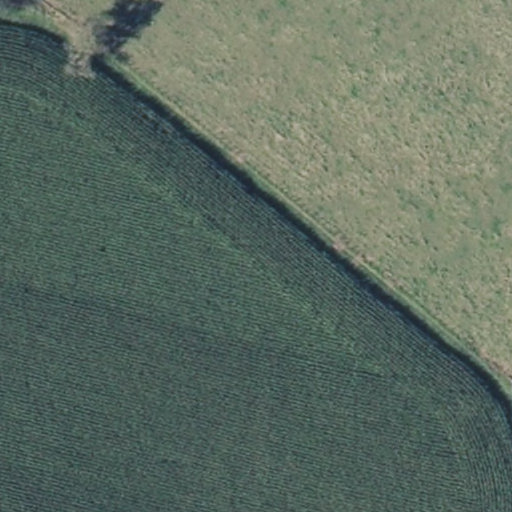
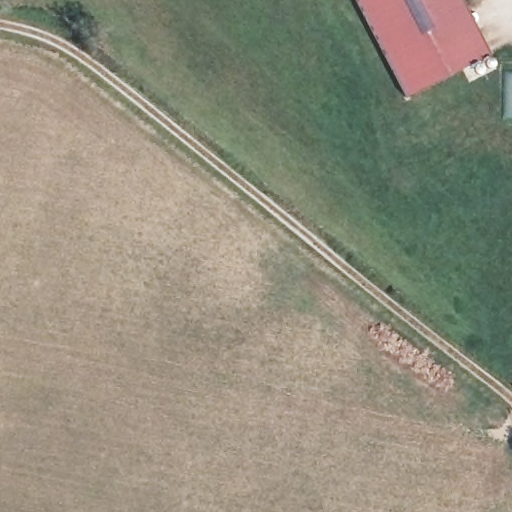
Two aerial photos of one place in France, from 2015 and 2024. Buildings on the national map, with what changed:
new [(406,97),(356,0),(461,0),(489,55),(406,97)]

